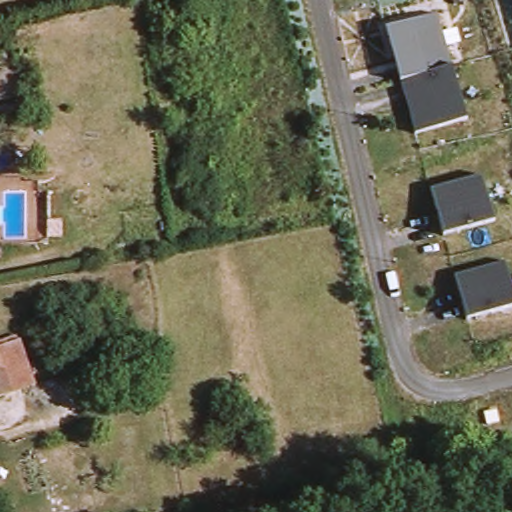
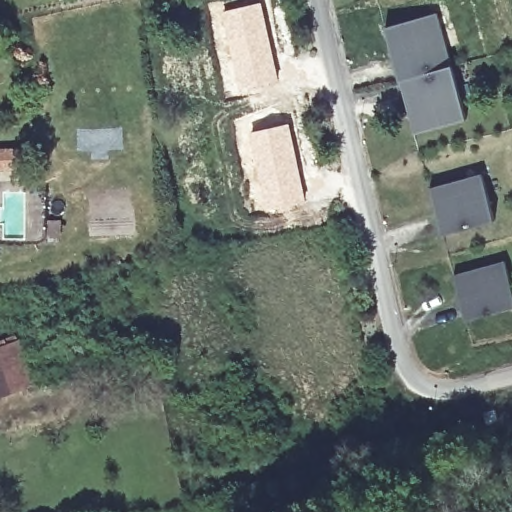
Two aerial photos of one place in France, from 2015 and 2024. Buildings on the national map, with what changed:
new [(262,1),(279,81),(236,91),(219,11),(262,1)]
unchanged [(382,25),(435,10),(450,63),(397,78),(382,25)]
unchanged [(464,117),(412,132),(397,78),(450,63),(464,117)]
new [(290,122),(307,201),(255,213),(251,181),(254,180),(246,132),(290,122)]
unchanged [(492,219),(440,233),(427,188),(480,173),(492,219)]
unchanged [(512,292),(512,305),(482,314),(463,319),(463,317),(451,274),(503,259),(512,292)]
unchanged [(0,346),(17,341),(36,385),(0,399),(0,346)]

